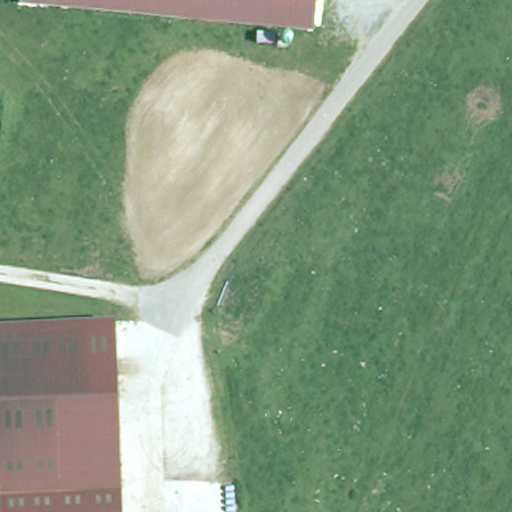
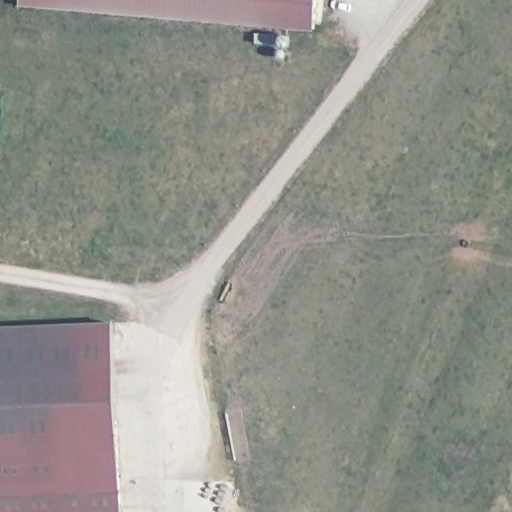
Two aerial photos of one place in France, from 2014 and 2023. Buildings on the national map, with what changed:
unchanged [(20,4),(21,0),(316,0),(313,31),(20,4)]
unchanged [(120,512),(0,512),(0,490),(0,331),(114,327),(120,512)]

